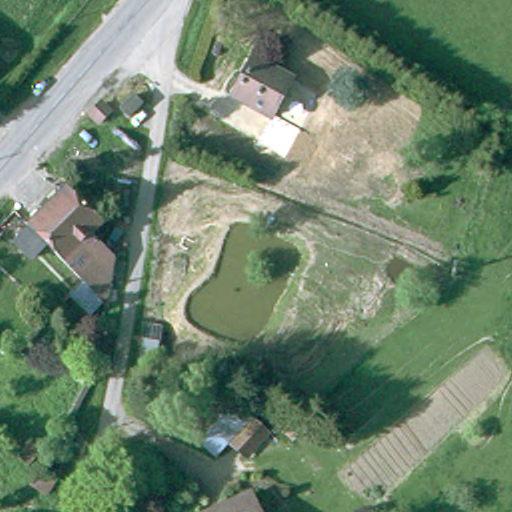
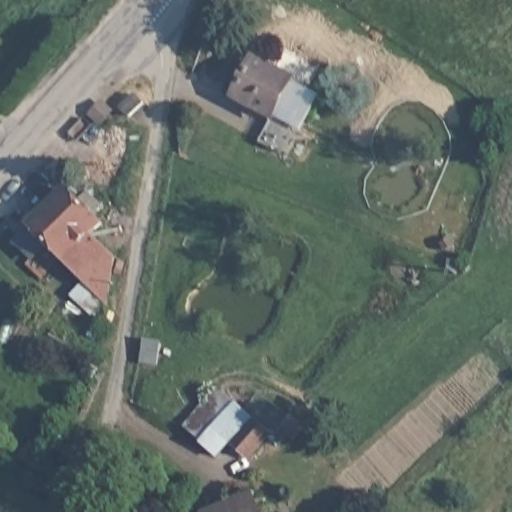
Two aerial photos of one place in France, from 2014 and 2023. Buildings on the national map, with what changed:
unchanged [(264,114),(231,94),(253,59),(286,79),(264,114)]
unchanged [(128,113),(119,101),(132,88),(141,98),(128,113)]
unchanged [(88,106),(100,96),(108,104),(95,115),(88,106)]
unchanged [(70,296),(85,281),(23,218),(62,180),(94,213),(83,226),(107,250),(100,296),(95,323),(70,296)]
unchanged [(205,509),(211,507),(249,491),(258,512),(206,512),(205,509)]
unchanged [(23,511),(26,512),(23,512),(23,511)]

